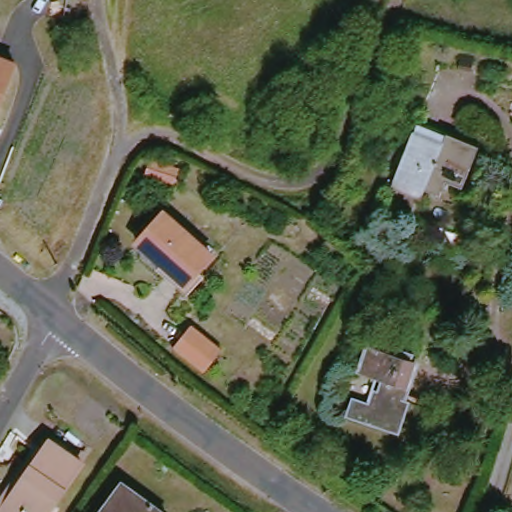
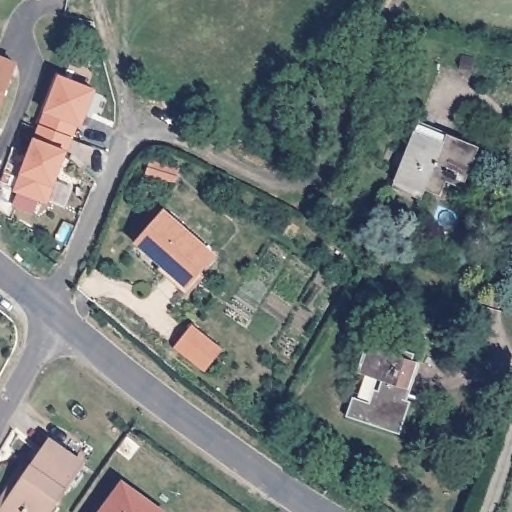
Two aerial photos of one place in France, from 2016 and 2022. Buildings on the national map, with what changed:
unchanged [(0,107),(0,58),(17,64),(0,107)]
new [(57,76),(95,90),(81,125),(77,123),(72,138),(38,125),(57,76)]
unchanged [(392,183),(397,170),(412,121),(442,132),(445,123),(479,134),(465,175),(451,170),(448,179),(428,173),(425,180),(422,193),(392,183)]
new [(38,125),(72,138),(47,203),(13,190),(38,125)]
unchanged [(183,284),(134,241),(160,210),(209,253),(183,284)]
unchanged [(200,372),(166,347),(185,319),(217,345),(200,372)]
unchanged [(401,392),(408,395),(395,432),(342,410),(348,393),(363,398),(369,385),(375,387),(378,378),(362,371),(373,343),(395,352),(398,347),(412,353),(410,358),(415,360),(401,392)]
unchanged [(1,496),(16,475),(20,479),(47,439),(80,462),(45,512),(0,512),(0,497),(1,496)]
unchanged [(118,484),(157,512),(100,512),(118,484)]

